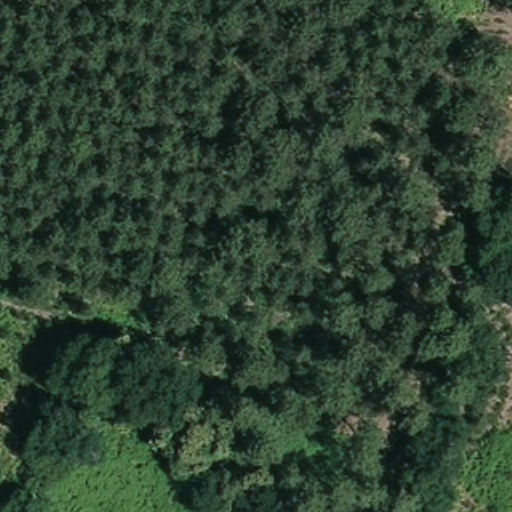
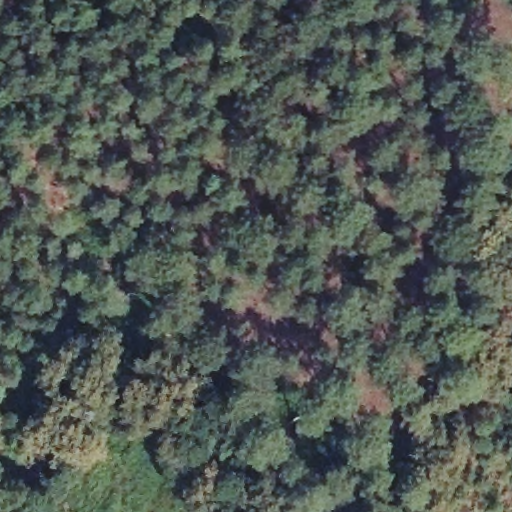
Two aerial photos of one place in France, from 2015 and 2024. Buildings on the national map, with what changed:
[]

